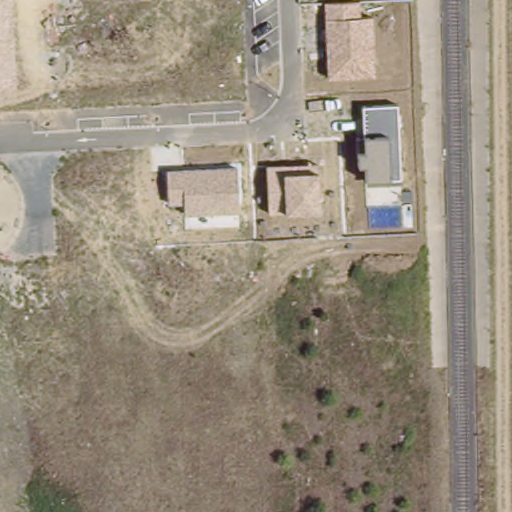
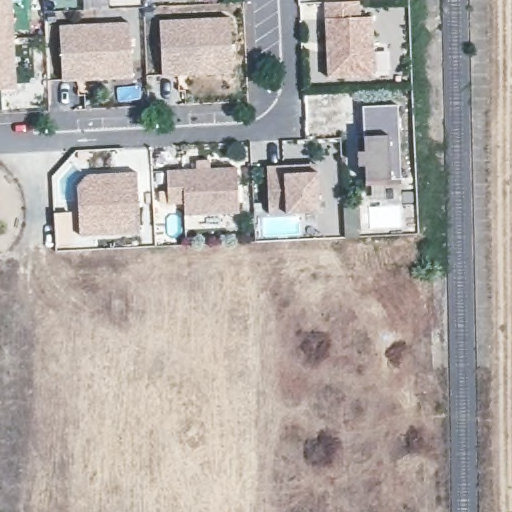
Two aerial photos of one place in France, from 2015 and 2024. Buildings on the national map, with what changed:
unchanged [(17,90),(0,92),(0,0),(12,0),(17,90)]
new [(142,1),(141,0),(165,0),(142,1)]
unchanged [(325,3),(360,1),(360,17),(372,17),(375,75),(328,79),(325,3)]
new [(53,78),(51,24),(122,21),(124,59),(125,76),(108,76),(80,77),(72,77),(53,78)]
new [(145,89),(143,36),(211,33),(213,71),(214,87),(197,88),(169,89),(162,89),(145,89)]
unchanged [(366,167),(358,167),(357,152),(365,152),(364,138),(362,106),(397,104),(402,179),(390,181),(367,182),(366,167)]
unchanged [(267,167),(317,164),(317,172),(320,211),(287,213),(269,214),(267,167)]
unchanged [(168,172),(237,167),(239,212),(185,214),(185,204),(168,204),(168,172)]
new [(80,235),(78,185),(87,174),(137,172),(139,233),(80,235)]

